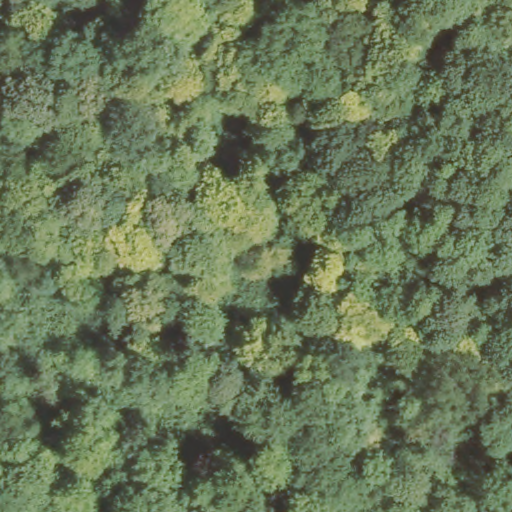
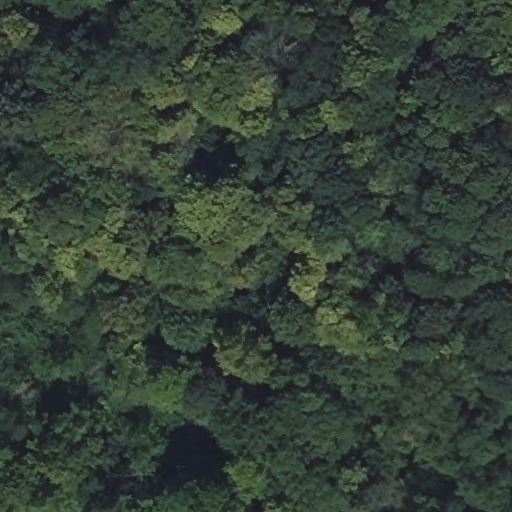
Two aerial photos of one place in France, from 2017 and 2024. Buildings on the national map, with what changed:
unchanged [(42,384),(7,418),(0,411),(0,382),(17,363),(42,384)]

